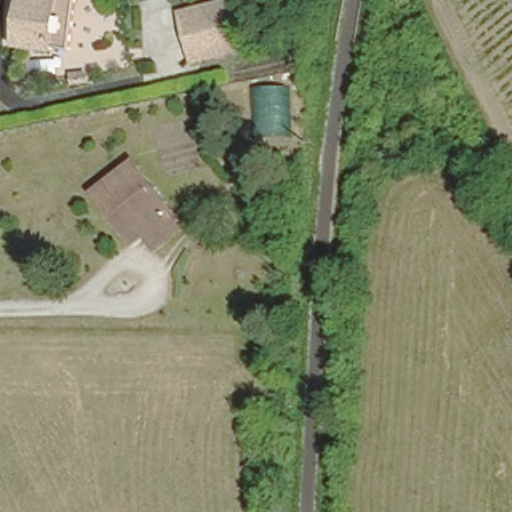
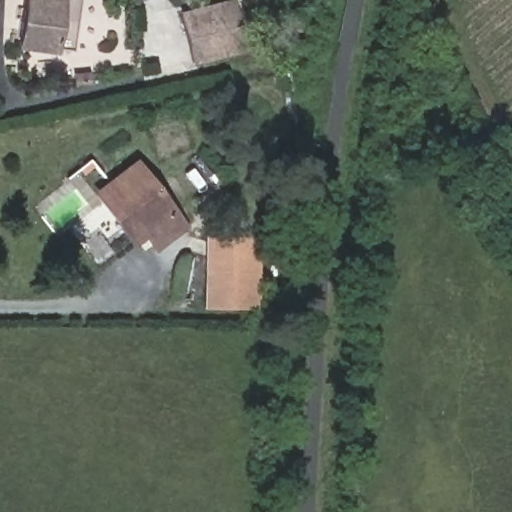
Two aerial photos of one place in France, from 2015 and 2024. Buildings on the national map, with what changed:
unchanged [(63,15),(53,15),(52,25),(63,26),(62,43),(49,42),(49,46),(17,42),(21,0),(64,0),(63,15)]
unchanged [(178,10),(236,2),(248,47),(189,58),(178,10)]
unchanged [(291,89),(285,136),(254,135),(258,85),(291,89)]
unchanged [(91,185),(103,177),(130,156),(174,215),(148,235),(138,222),(127,231),(91,185)]
new [(203,236),(256,237),(256,308),(203,308),(203,236)]

